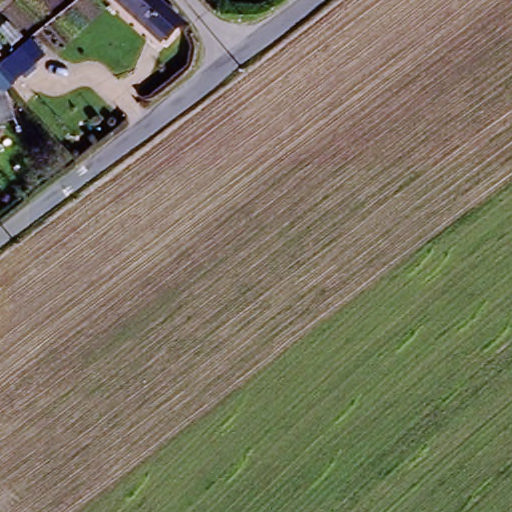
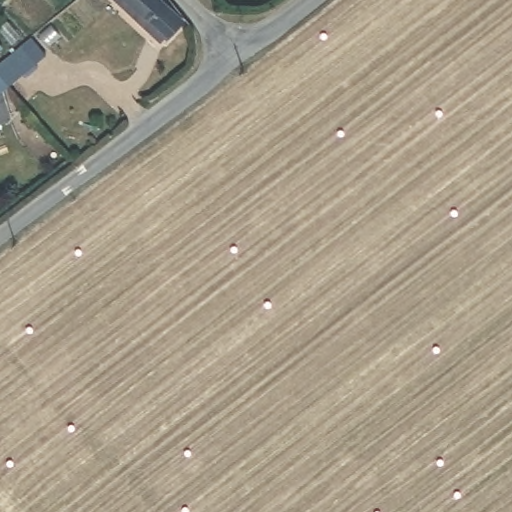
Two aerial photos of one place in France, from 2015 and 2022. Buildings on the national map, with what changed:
unchanged [(165,29),(133,0),(166,0),(179,11),(165,29)]
unchanged [(5,54),(21,41),(41,61),(1,89),(12,122),(0,126),(0,49),(5,54)]

